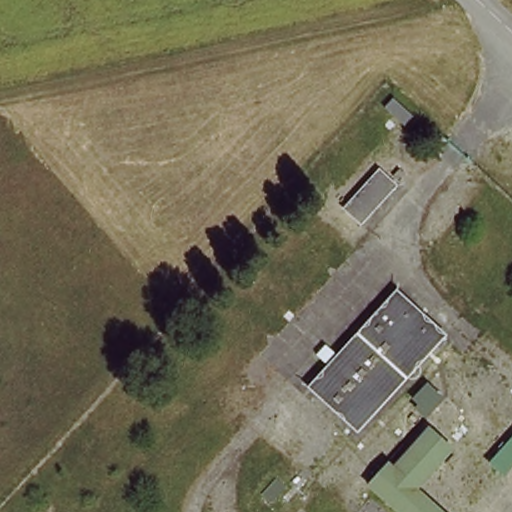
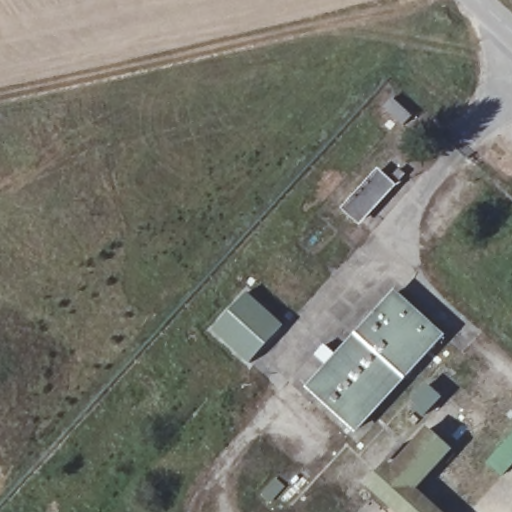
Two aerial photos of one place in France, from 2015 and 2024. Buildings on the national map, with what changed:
unchanged [(404,188),(365,228),(341,206),(377,167),(404,188)]
new [(247,293),(285,326),(251,365),(214,332),(247,293)]
unchanged [(450,341),(356,433),(308,389),(397,294),(450,341)]
unchanged [(425,490),(448,512),(390,512),(366,488),(430,427),(459,454),(425,490)]

